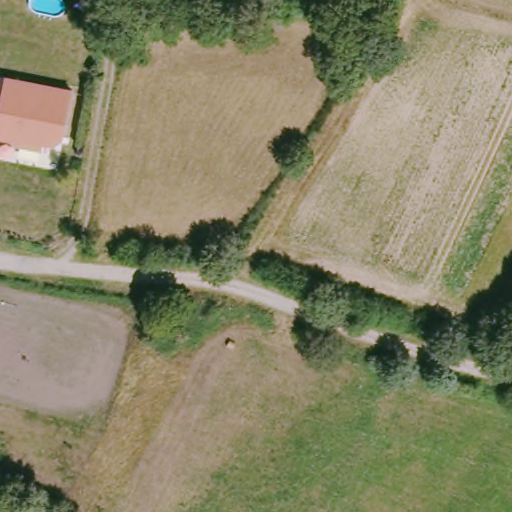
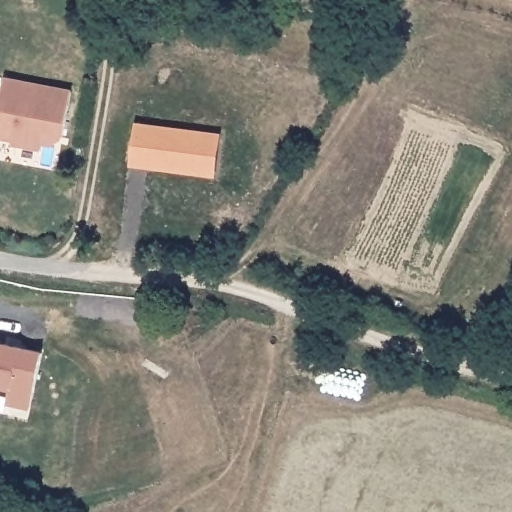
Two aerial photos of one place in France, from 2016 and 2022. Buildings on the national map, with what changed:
unchanged [(45,140),(45,148),(23,144),(23,139),(0,136),(0,104),(2,104),(7,78),(73,89),(66,135),(55,143),(45,140)]
new [(222,135),(217,176),(196,174),(197,170),(187,169),(187,172),(132,165),(137,125),(222,135)]
new [(31,412),(8,406),(11,394),(0,391),(0,346),(44,357),(31,412)]

